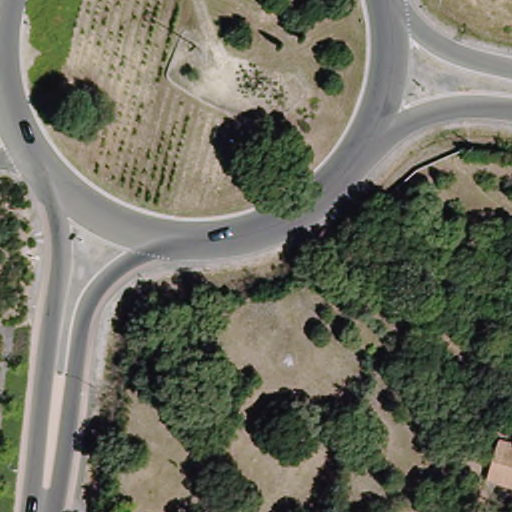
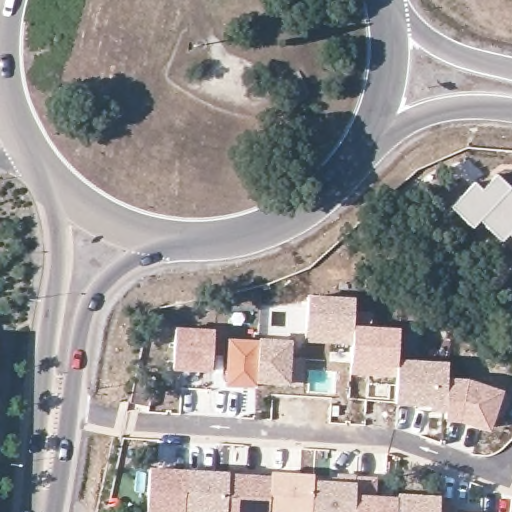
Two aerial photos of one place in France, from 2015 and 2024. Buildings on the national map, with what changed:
new [(482,190),(496,175),(512,190),(512,238),(509,235),(502,243),(479,221),(472,228),(450,208),(474,183),(482,190)]
new [(305,331),(307,296),(353,299),(353,315),(352,334),(351,345),(305,343),(305,331)]
new [(352,334),(353,315),(380,315),(378,332),(398,333),(398,362),(447,365),(447,382),(468,383),(499,394),(487,429),(459,419),(445,418),(445,411),(430,410),(430,405),(395,403),(397,377),(348,375),(351,345),(352,334)]
new [(174,331),(214,332),(212,371),(172,369),(174,331)]
new [(227,339),(258,341),(258,338),(292,340),(291,360),(303,359),(302,387),(290,386),(255,384),(255,388),(224,386),(227,339)]
demolished [(512,437),(512,481),(488,474),(500,434),(512,437)]
new [(185,470),(183,509),(183,512),(147,512),(148,469),(185,470)]
new [(226,512),(183,512),(185,470),(229,474),(226,512)]
new [(270,477),(269,512),(226,512),(229,474),(270,477)]
new [(270,474),(312,476),(312,482),(340,484),(355,485),(353,512),(269,512),(270,477),(270,474)]
new [(340,484),(340,476),(377,478),(376,497),(397,497),(396,512),(353,512),(355,485),(340,484)]
new [(446,512),(396,512),(397,497),(397,493),(440,495),(440,512),(446,512)]
new [(455,509),(455,512),(439,512),(439,508),(455,509)]

